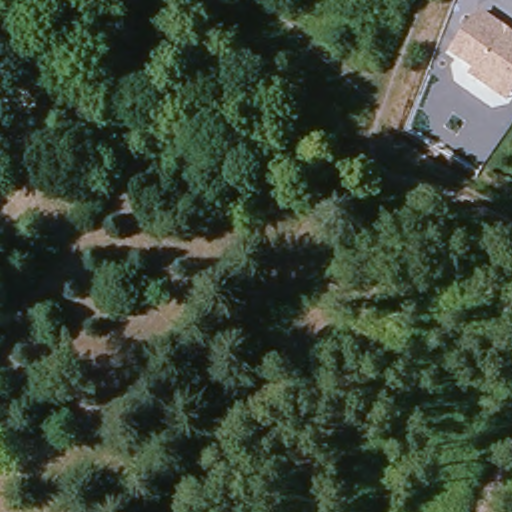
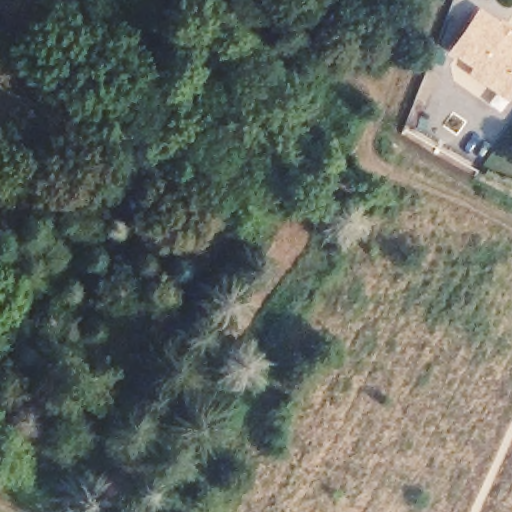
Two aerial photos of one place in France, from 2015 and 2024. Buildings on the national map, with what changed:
unchanged [(492,87),(473,74),(477,68),(453,51),(475,20),(499,37),(505,29),(512,34),(512,85),(507,81),(492,87)]

